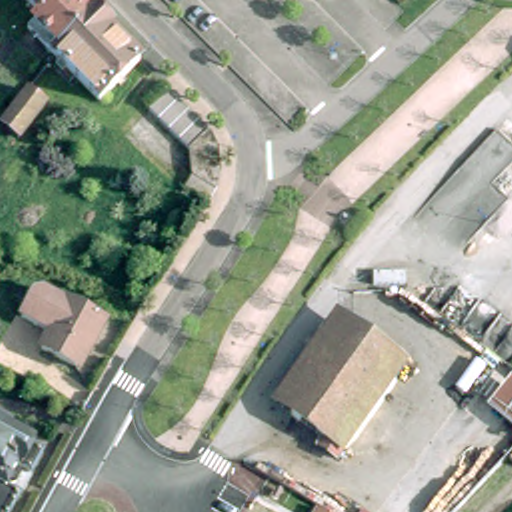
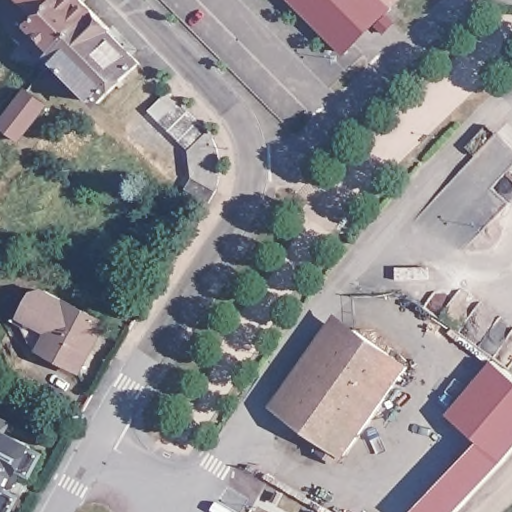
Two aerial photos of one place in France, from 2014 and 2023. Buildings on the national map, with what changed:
unchanged [(28,0),(62,0),(45,17),(28,0)]
unchanged [(32,30),(45,17),(62,0),(86,0),(98,13),(55,55),(32,30)]
new [(345,55),(291,0),(385,0),(392,7),(345,55)]
unchanged [(98,13),(114,29),(112,31),(140,61),(100,100),(55,55),(98,13)]
unchanged [(194,166),(185,140),(149,104),(168,84),(207,126),(218,156),(220,170),(212,195),(187,184),(194,166)]
unchanged [(27,92),(45,105),(17,140),(0,128),(27,92)]
unchanged [(69,366),(37,347),(45,335),(17,317),(32,291),(42,289),(104,325),(90,348),(75,370),(69,366)]
unchanged [(292,418),(272,405),(336,312),(356,327),(292,418)]
unchanged [(292,418),(356,327),(391,353),(327,442),(292,418)]
unchanged [(407,365),(345,455),(327,442),(391,353),(407,365)]
new [(480,441),(448,415),(494,360),(512,376),(512,447),(502,460),(480,441)]
unchanged [(9,420),(5,428),(27,440),(25,445),(35,450),(25,470),(12,463),(10,467),(12,470),(12,472),(12,475),(12,478),(10,480),(7,482),(5,483),(2,482),(0,487),(0,416),(9,420)]
new [(454,512),(415,512),(480,441),(502,460),(454,512)]
unchanged [(12,495),(3,512),(0,512),(0,487),(12,495)]

